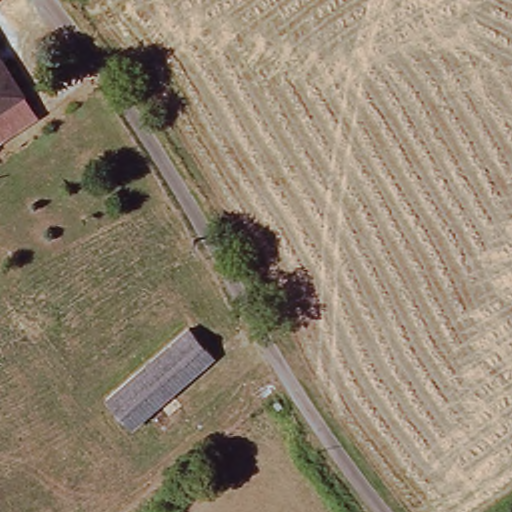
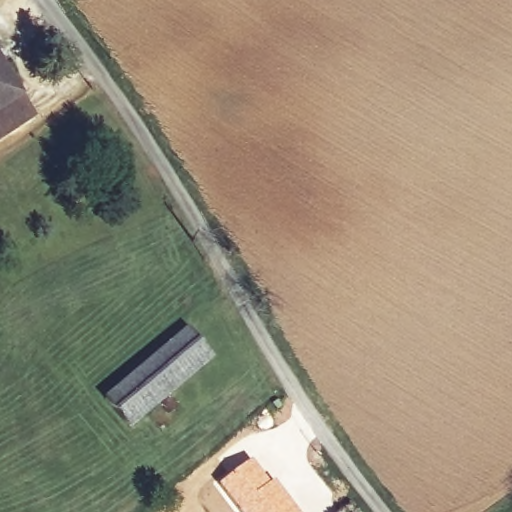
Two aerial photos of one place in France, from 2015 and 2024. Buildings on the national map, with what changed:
unchanged [(37,117),(2,138),(0,139),(0,55),(37,117)]
unchanged [(127,385),(183,328),(207,353),(152,408),(132,426),(109,402),(127,385)]
new [(250,459),(277,487),(297,512),(239,512),(218,485),(250,459)]

